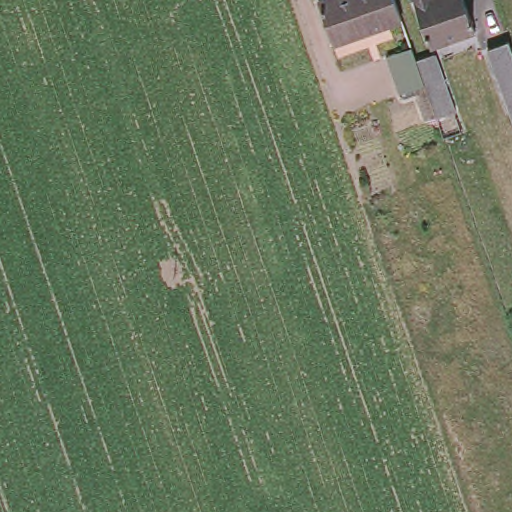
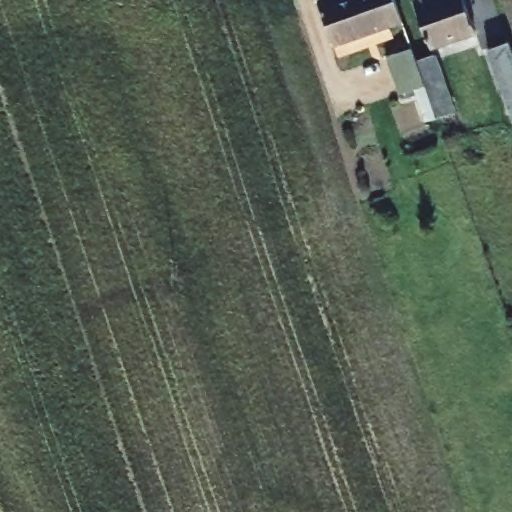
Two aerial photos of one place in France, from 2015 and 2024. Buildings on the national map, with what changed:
unchanged [(403,16),(333,42),(318,1),(323,0),(397,0),(403,16)]
unchanged [(418,0),(468,0),(479,27),(436,43),(418,0)]
unchanged [(512,38),(512,40),(512,109),(487,46),(512,38)]
unchanged [(397,93),(384,56),(410,46),(420,73),(438,68),(452,104),(434,111),(423,85),(397,93)]

